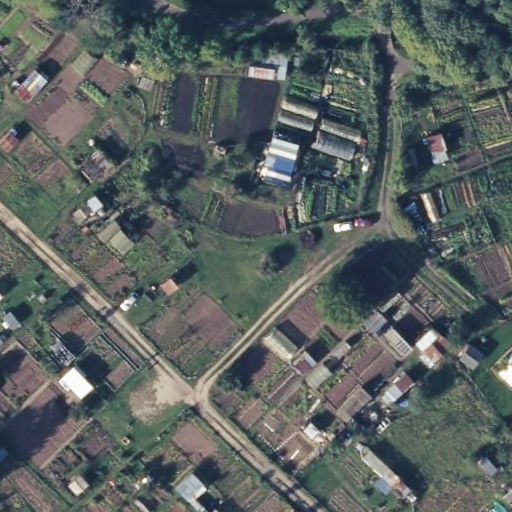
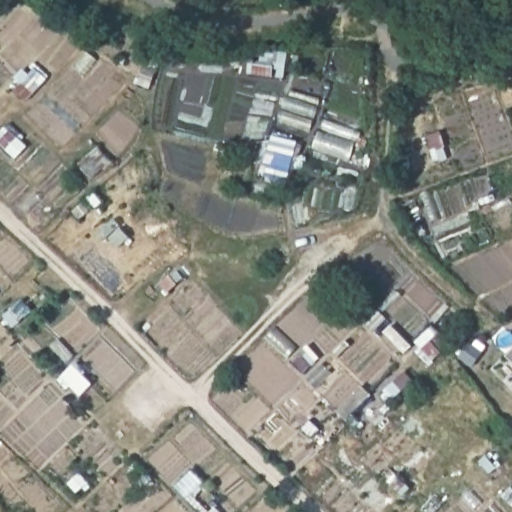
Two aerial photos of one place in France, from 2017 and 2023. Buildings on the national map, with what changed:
unchanged [(503,358),(512,350),(512,366),(503,358)]

